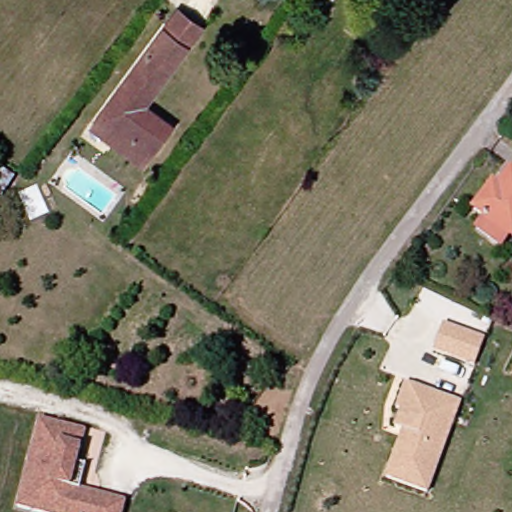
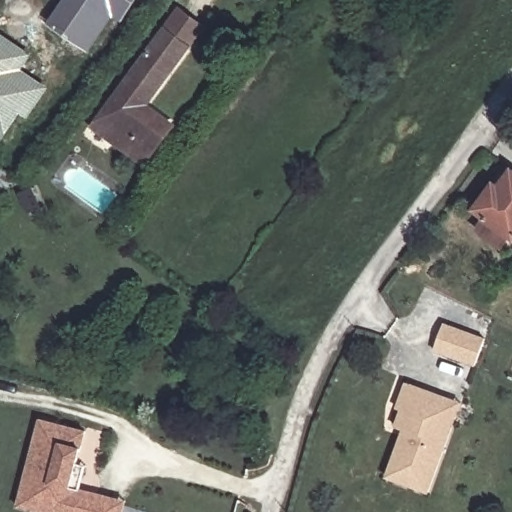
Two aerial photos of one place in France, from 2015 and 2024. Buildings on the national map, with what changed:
new [(124,21),(114,15),(89,50),(47,23),(64,0),(138,0),(124,21)]
new [(51,87),(30,119),(21,113),(3,140),(0,138),(0,30),(34,55),(23,67),(51,87)]
unchanged [(146,104),(173,126),(144,165),(94,127),(165,30),(189,47),(146,104)]
unchanged [(508,235),(500,246),(476,230),(485,217),(476,210),(495,183),(500,187),(512,172),(512,237),(508,235)]
unchanged [(480,362),(439,347),(449,320),(490,336),(480,362)]
unchanged [(389,473),(404,432),(406,426),(398,423),(405,406),(400,404),(410,379),(432,387),(464,400),(457,419),(431,489),(389,473)]
unchanged [(34,512),(17,507),(39,421),(84,432),(76,464),(86,467),(79,491),(105,497),(124,502),(122,512),(34,512)]

